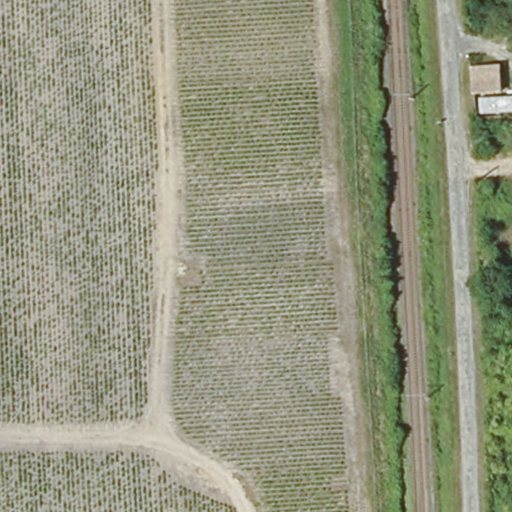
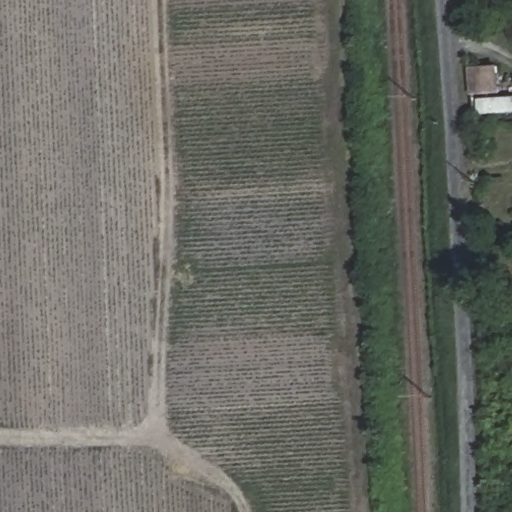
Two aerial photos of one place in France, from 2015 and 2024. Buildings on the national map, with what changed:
unchanged [(476,100),(476,72),(502,72),(502,100),(512,100),(512,116),(477,117),(476,100)]

